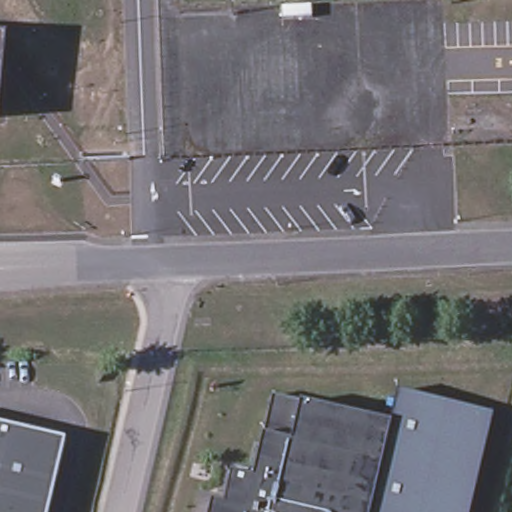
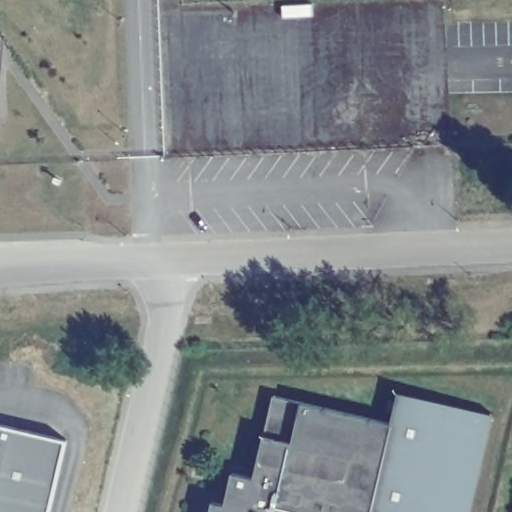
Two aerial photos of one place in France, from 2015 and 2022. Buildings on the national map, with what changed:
unchanged [(0,113),(0,38),(9,39),(0,113)]
unchanged [(227,504),(235,472),(257,478),(277,395),(395,425),(402,393),(497,417),(473,512),(211,512),(215,501),(227,504)]
unchanged [(51,512),(0,512),(0,425),(67,441),(51,512)]

